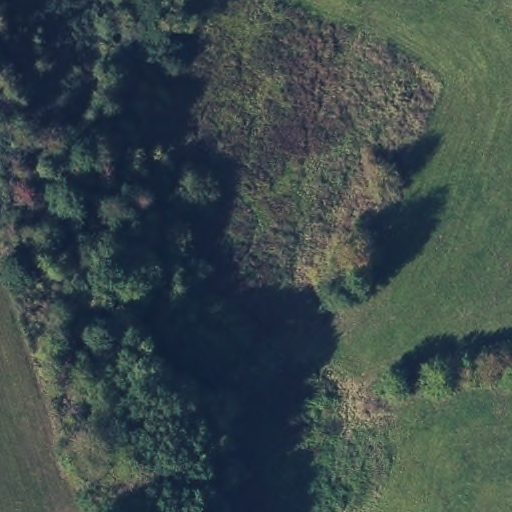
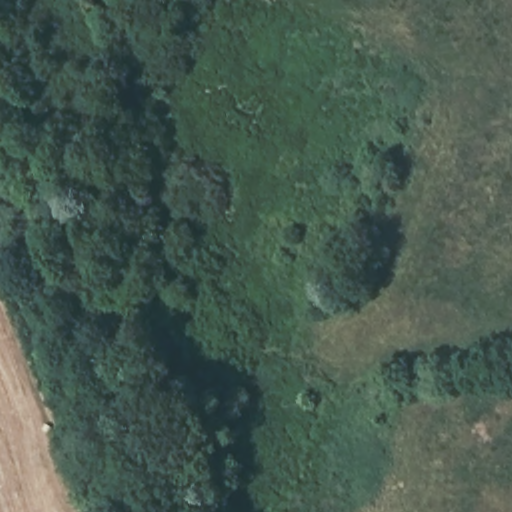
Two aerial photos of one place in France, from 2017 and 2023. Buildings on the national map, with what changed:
[]

